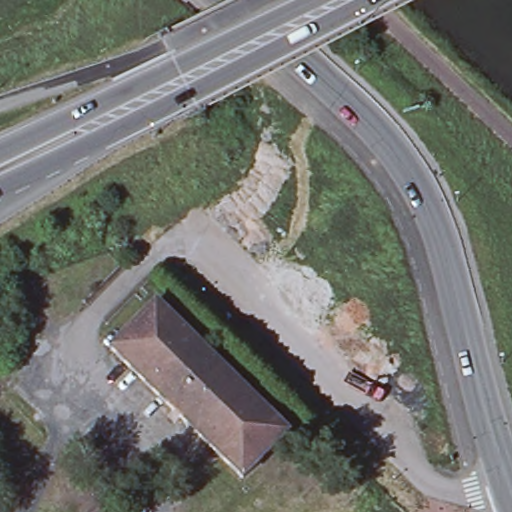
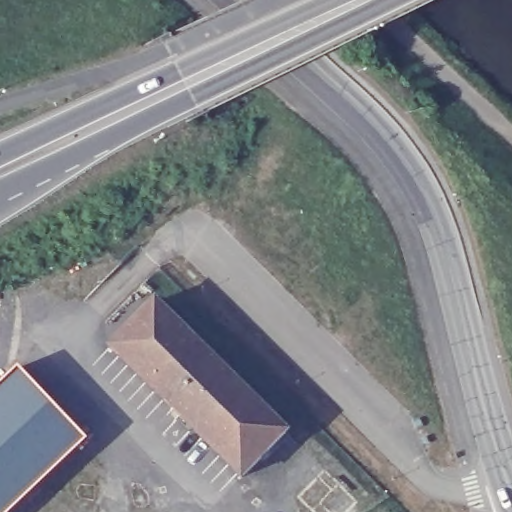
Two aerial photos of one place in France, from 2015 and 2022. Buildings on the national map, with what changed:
unchanged [(155,302),(284,432),(238,478),(109,348),(155,302)]
new [(87,441),(12,512),(0,512),(0,384),(17,367),(87,441)]

